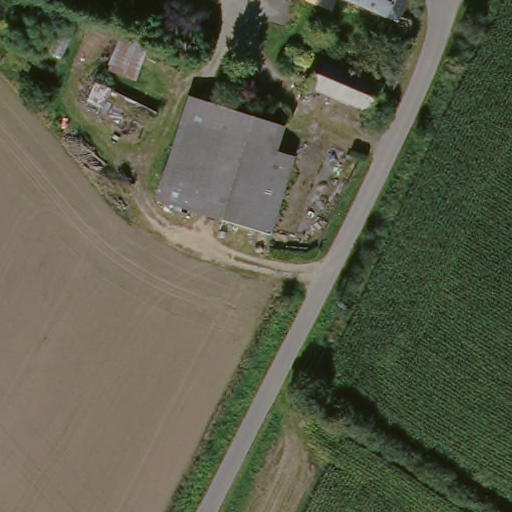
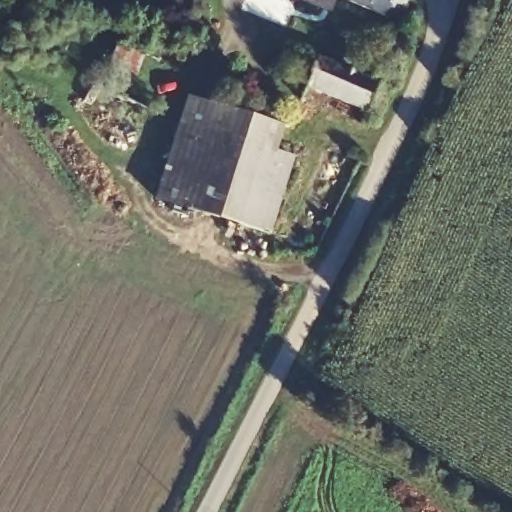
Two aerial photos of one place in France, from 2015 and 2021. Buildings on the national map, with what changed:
unchanged [(408,2),(403,21),(382,14),(380,20),(325,0),(405,0),(408,2)]
unchanged [(128,85),(97,70),(120,35),(142,56),(128,85)]
unchanged [(384,83),(361,134),(298,105),(319,56),(384,83)]
unchanged [(180,97),(284,133),(271,166),(306,178),(286,242),(151,198),(180,97)]

